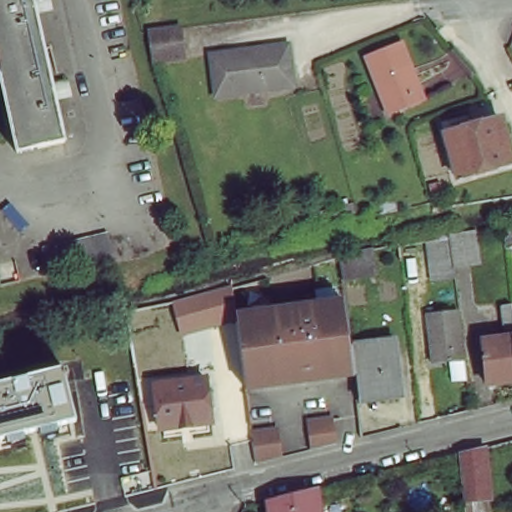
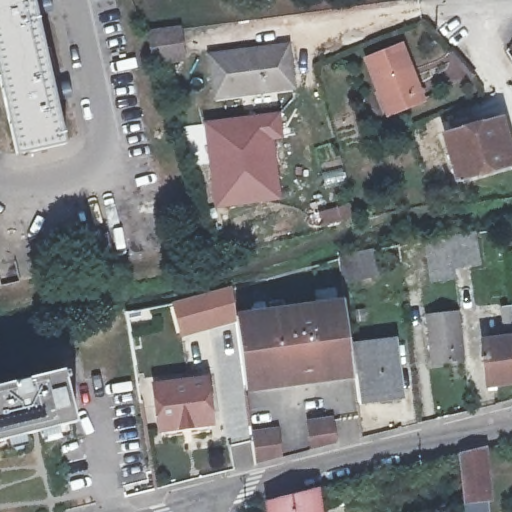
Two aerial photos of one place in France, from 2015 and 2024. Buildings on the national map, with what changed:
unchanged [(65,99),(55,101),(64,141),(16,153),(0,81),(0,0),(49,0),(52,11),(45,12),(35,14),(50,81),(60,80),(67,79),(70,97),(65,99)]
unchanged [(153,34),(180,30),(185,61),(158,64),(153,34)]
unchanged [(419,101),(391,112),(384,92),(379,94),(367,59),(399,46),(419,101)]
unchanged [(290,89),(214,96),(210,56),(286,47),(290,89)]
new [(202,121),(281,111),(284,139),(275,140),(283,200),(213,210),(203,154),(198,155),(200,163),(194,165),(183,125),(202,121)]
unchanged [(501,127),(506,150),(500,150),(506,176),(457,189),(444,142),(501,127)]
unchanged [(347,207),(350,218),(333,222),(330,212),(347,207)]
unchanged [(115,262),(49,276),(43,250),(109,236),(115,262)]
unchanged [(512,236),(512,254),(505,255),(503,237),(512,236)]
unchanged [(453,269),(454,277),(430,278),(426,244),(450,240),(474,237),(475,257),(475,266),(453,269)]
unchanged [(396,244),(410,241),(412,256),(398,258),(396,244)]
unchanged [(371,247),(375,276),(342,282),(339,254),(371,247)]
unchanged [(233,285),(234,290),(238,321),(212,325),(181,336),(172,302),(233,285)]
unchanged [(238,321),(350,306),(354,345),(359,380),(324,385),(310,387),(249,395),(238,321)]
unchanged [(461,312),(466,360),(435,363),(431,315),(461,312)]
unchanged [(481,355),(502,352),(500,320),(511,320),(512,335),(512,396),(484,398),(481,355)]
unchanged [(512,320),(512,335),(511,320),(512,320)]
unchanged [(359,380),(354,345),(397,340),(404,391),(361,398),(359,380)]
unchanged [(59,375),(60,377),(66,375),(67,382),(62,383),(72,425),(0,443),(0,389),(59,375)]
unchanged [(217,425),(212,426),(213,435),(169,440),(168,432),(163,433),(157,389),(211,381),(217,425)]
unchanged [(311,427),(337,424),(341,447),(315,454),(311,427)]
unchanged [(250,433),(277,430),(282,456),(254,462),(250,433)]
unchanged [(494,497),(488,498),(489,512),(470,512),(463,453),(489,447),(494,497)]
unchanged [(317,488),(320,512),(268,512),(266,500),(317,488)]

